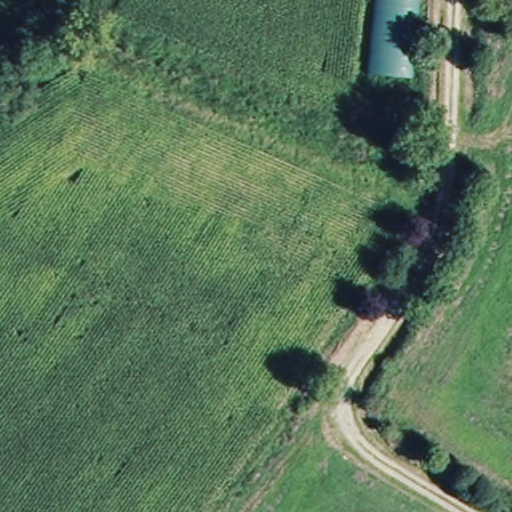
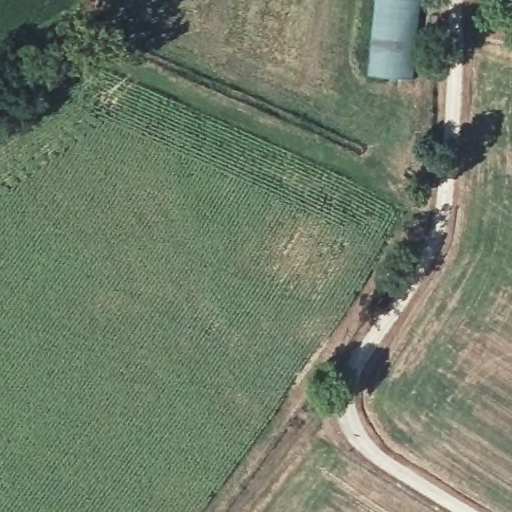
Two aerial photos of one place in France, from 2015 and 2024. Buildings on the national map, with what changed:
unchanged [(411,80),(367,74),(374,0),(418,0),(411,80)]

